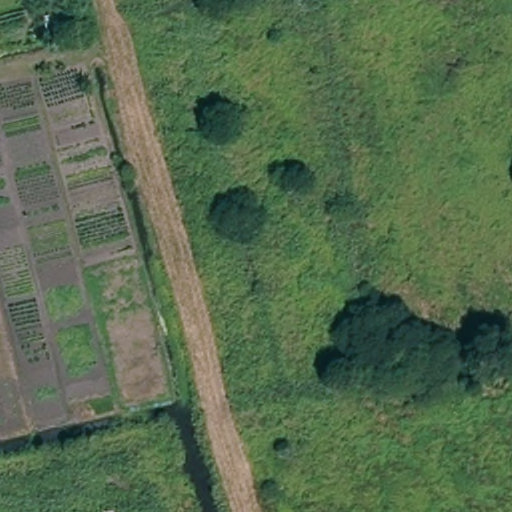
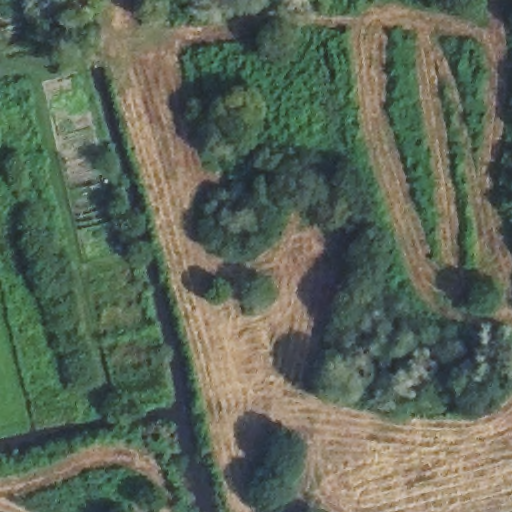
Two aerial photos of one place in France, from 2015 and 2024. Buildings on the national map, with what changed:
unchanged [(78,16),(82,36),(50,45),(42,24),(78,16)]

